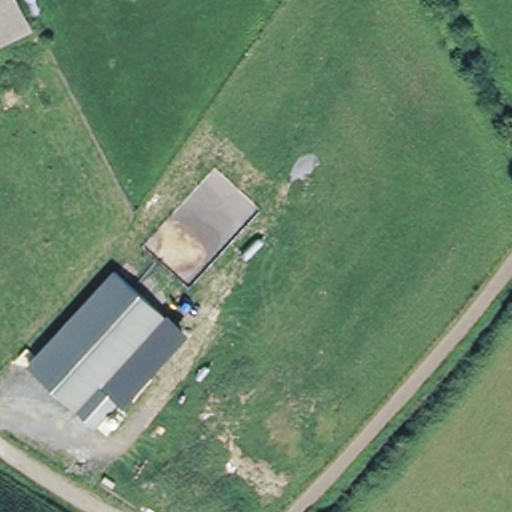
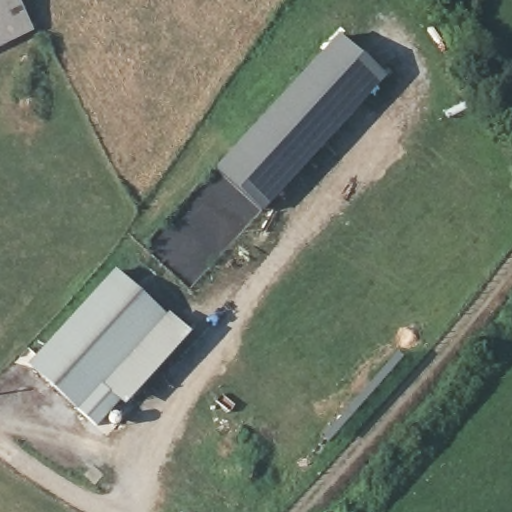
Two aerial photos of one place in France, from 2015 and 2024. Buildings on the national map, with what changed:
unchanged [(0,47),(0,0),(18,0),(31,32),(0,47)]
new [(214,170),(338,35),(384,77),(263,212),(214,170)]
unchanged [(189,332),(126,406),(120,400),(114,408),(123,416),(113,428),(103,420),(94,430),(26,365),(114,270),(189,332)]

